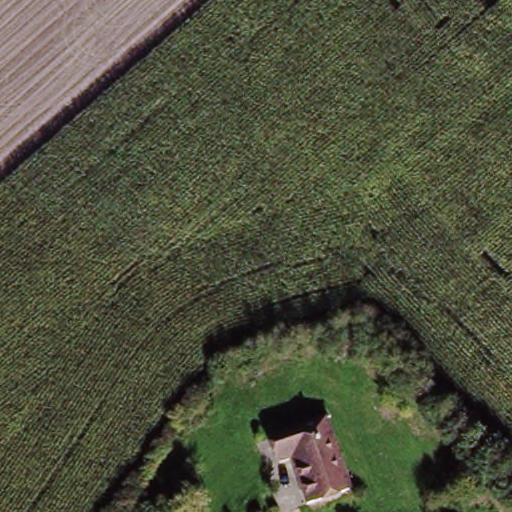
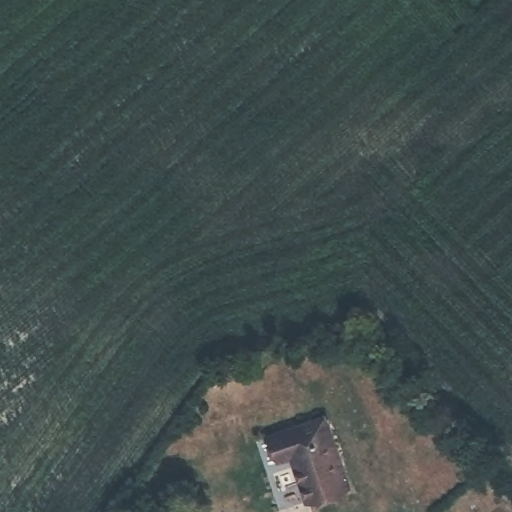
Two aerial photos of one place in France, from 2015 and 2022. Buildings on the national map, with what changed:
unchanged [(298,461),(286,466),(280,447),(292,443),(311,436),(327,430),(336,454),(343,473),(348,487),(333,493),(311,501),(298,461)]

